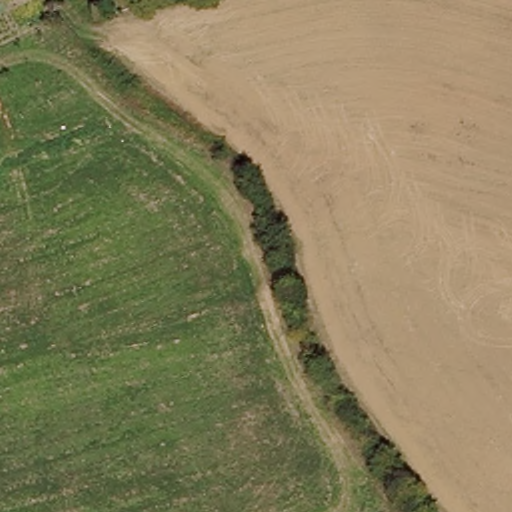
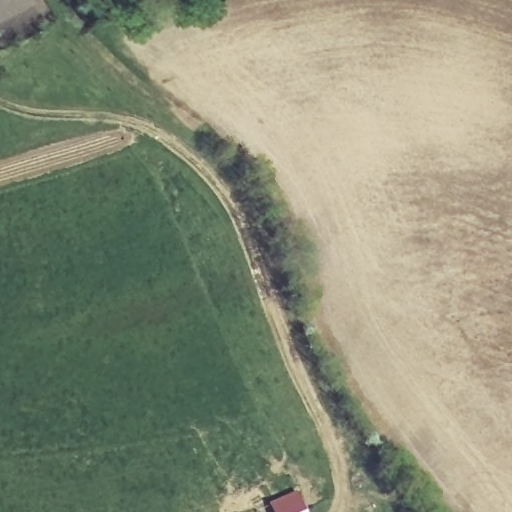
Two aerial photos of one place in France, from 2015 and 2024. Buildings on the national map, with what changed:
new [(270,512),(266,504),(295,492),(304,512),(270,512)]

